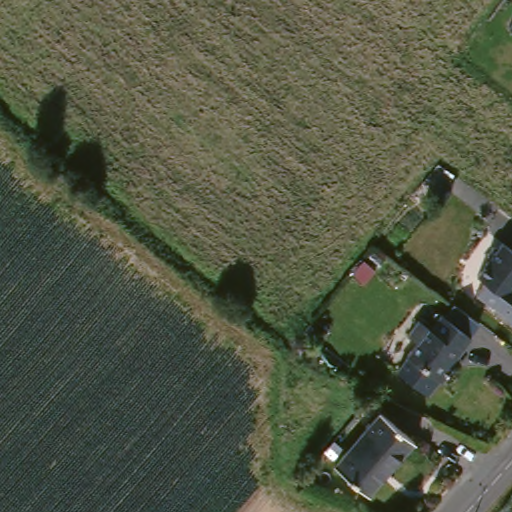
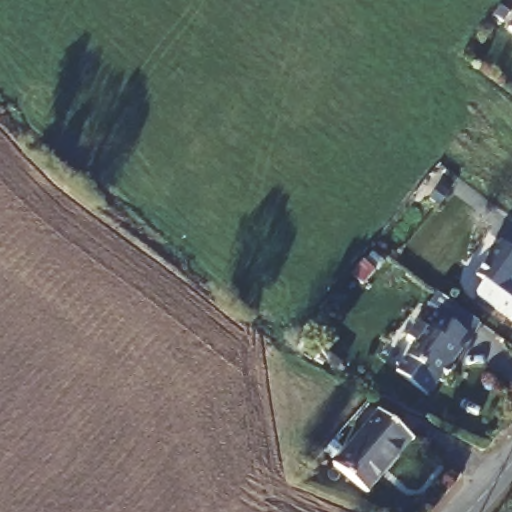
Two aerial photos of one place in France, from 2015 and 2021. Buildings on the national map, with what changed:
unchanged [(512,24),(512,36),(506,31),(512,24)]
unchanged [(501,247),(504,243),(512,248),(512,318),(478,294),(486,283),(478,278),(490,262),(488,254),(493,248),(501,247)]
unchanged [(455,367),(458,369),(445,385),(410,359),(420,346),(410,338),(422,323),(434,333),(445,318),(448,320),(458,306),(482,324),(472,338),(475,340),(455,367)]
unchanged [(413,437),(385,476),(389,479),(378,493),(344,469),(383,416),(413,437)]

